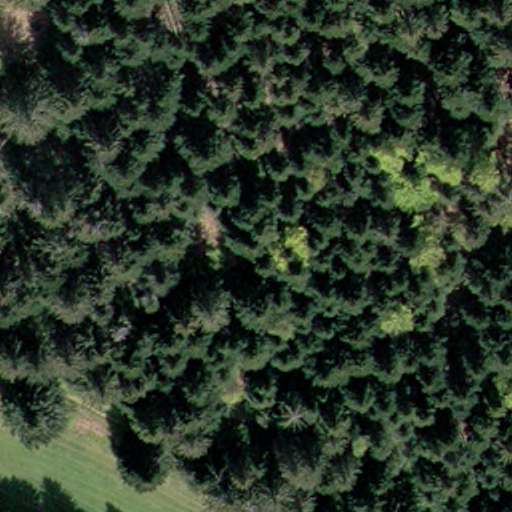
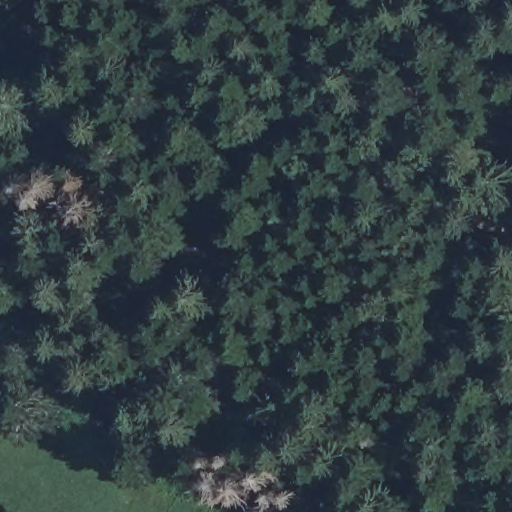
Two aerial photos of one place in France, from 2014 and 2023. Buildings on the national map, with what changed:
[]

